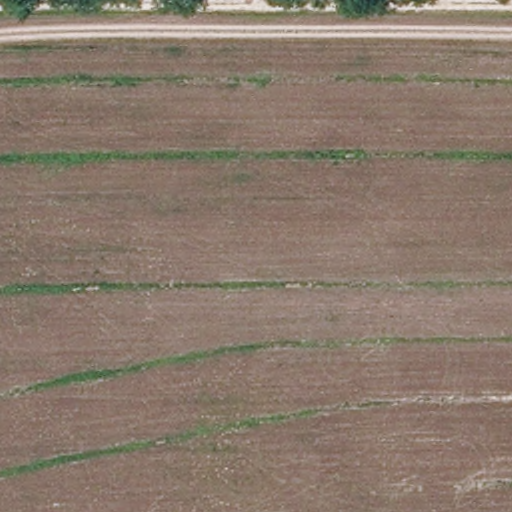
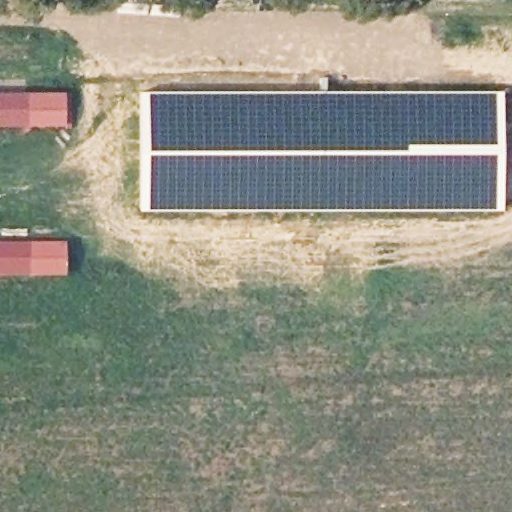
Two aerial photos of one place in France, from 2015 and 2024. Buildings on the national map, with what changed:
new [(322,88),(504,89),(504,210),(140,209),(141,160),(144,160),(140,90),(322,88)]
new [(66,125),(0,125),(0,91),(66,91),(66,125)]
new [(0,274),(0,241),(65,241),(66,274),(0,274)]
demolished [(162,426),(163,379),(190,379),(189,427),(162,426)]
demolished [(325,428),(327,379),(352,380),(351,429),(325,428)]
demolished [(0,460),(29,460),(30,512),(1,512),(0,460)]

